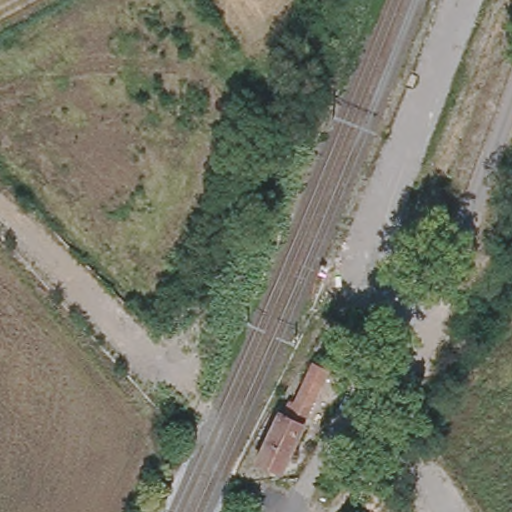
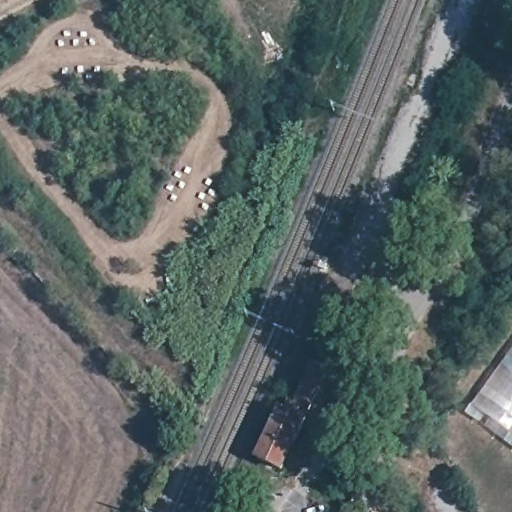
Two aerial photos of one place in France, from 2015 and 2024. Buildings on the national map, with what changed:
new [(474,405),(512,353),(512,433),(474,405)]
unchanged [(256,457),(280,404),(288,408),(313,357),(330,364),(305,416),(309,417),(284,471),(256,457)]
unchanged [(359,507),(376,486),(390,512),(362,512),(359,507)]

